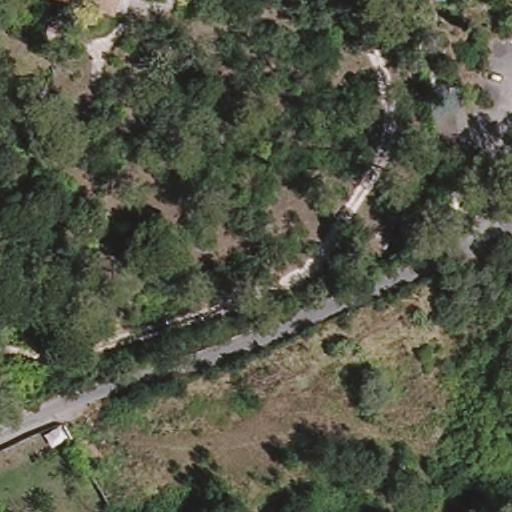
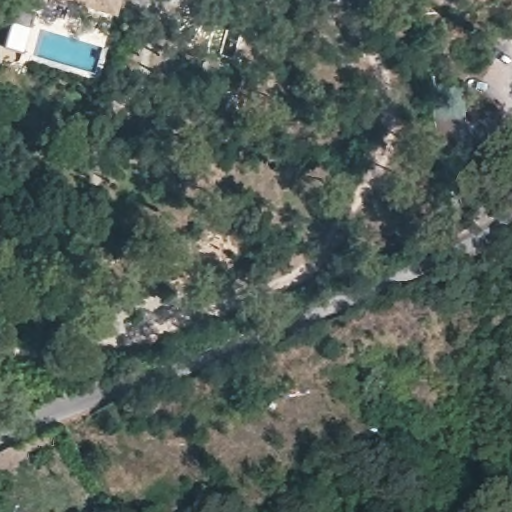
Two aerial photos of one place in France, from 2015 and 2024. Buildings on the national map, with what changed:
unchanged [(70,0),(122,0),(117,14),(70,0)]
unchanged [(462,106),(470,148),(442,155),(433,113),(462,106)]

